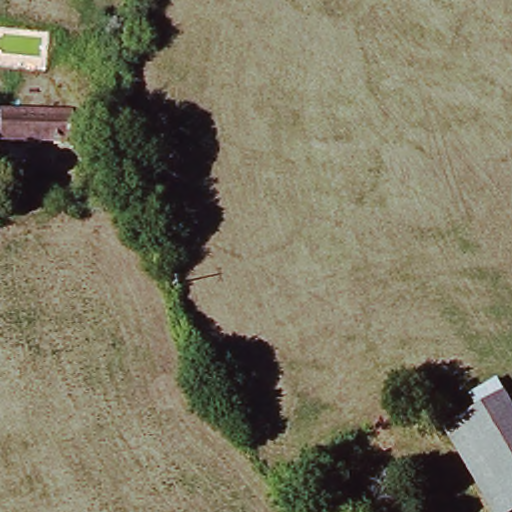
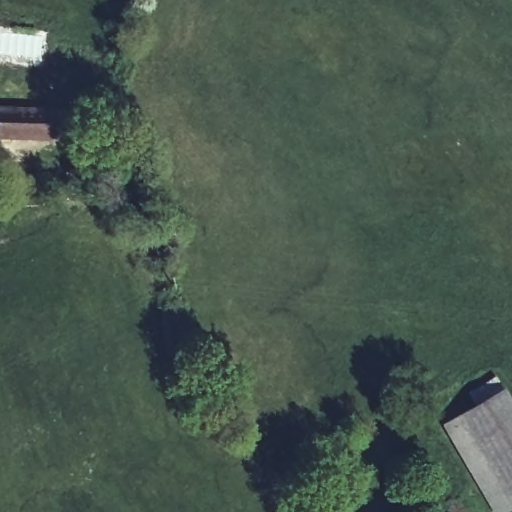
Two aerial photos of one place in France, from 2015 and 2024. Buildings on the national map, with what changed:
unchanged [(5,141),(5,111),(79,113),(77,143),(5,141)]
unchanged [(510,392),(512,397),(512,508),(504,512),(493,490),(456,419),(510,392)]

